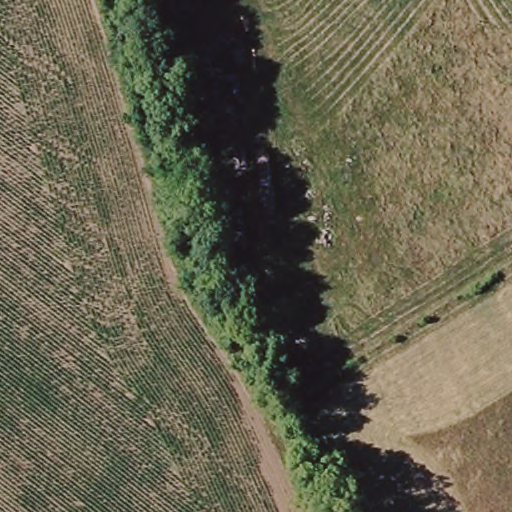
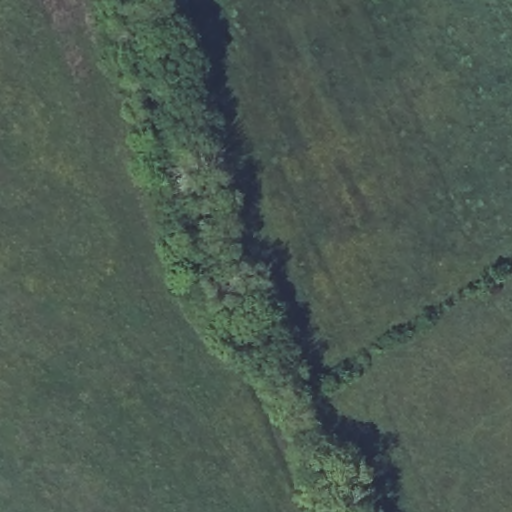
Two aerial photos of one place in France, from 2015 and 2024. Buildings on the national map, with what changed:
[]

